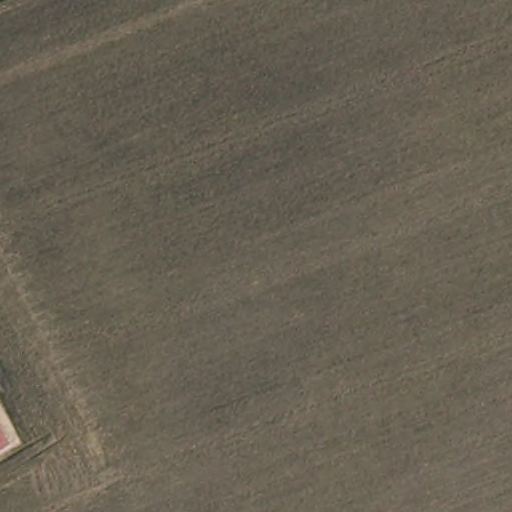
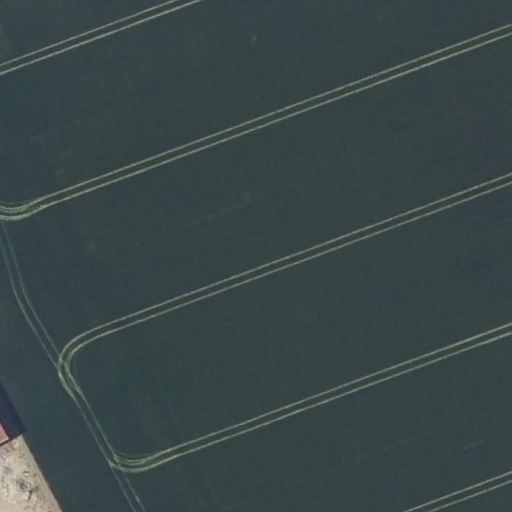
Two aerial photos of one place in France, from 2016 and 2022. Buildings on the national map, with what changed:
unchanged [(4,443),(0,445),(0,435),(4,443)]

